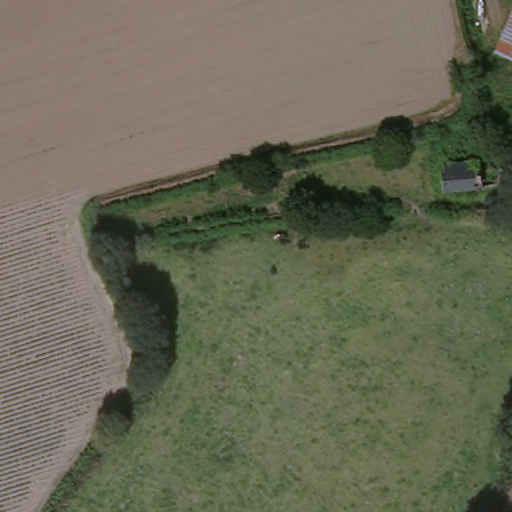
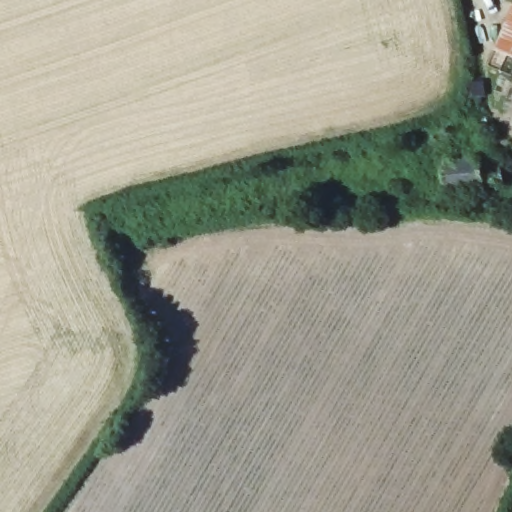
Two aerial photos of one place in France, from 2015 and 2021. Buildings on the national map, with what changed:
unchanged [(512,6),(512,55),(493,46),(512,6)]
unchanged [(429,155),(473,153),(474,164),(498,163),(499,182),(429,185),(429,155)]

